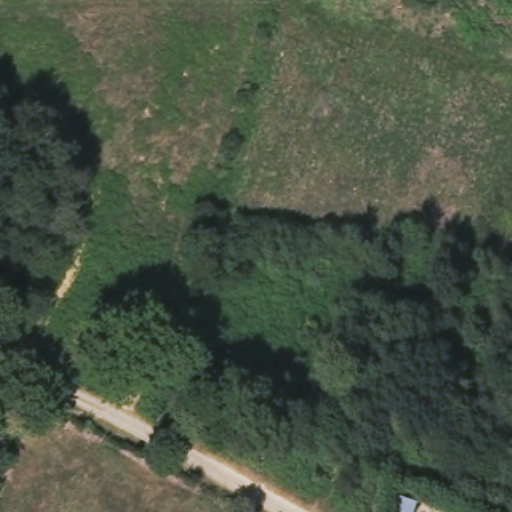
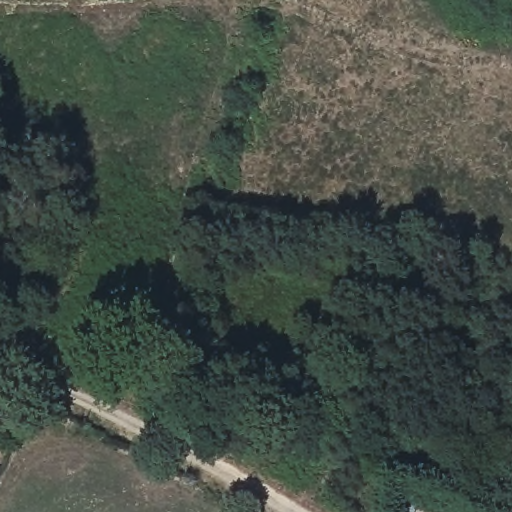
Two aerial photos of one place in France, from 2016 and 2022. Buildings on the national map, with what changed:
unchanged [(0,491),(0,473),(6,476),(0,491)]
unchanged [(396,512),(398,503),(416,512),(396,512)]

